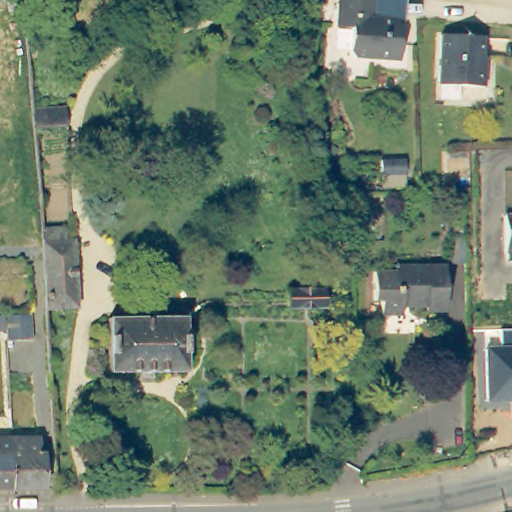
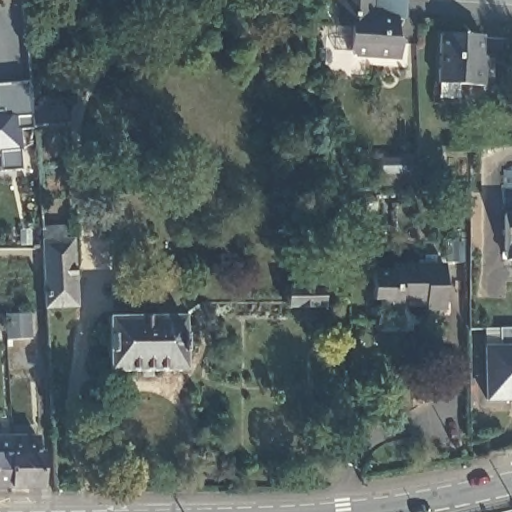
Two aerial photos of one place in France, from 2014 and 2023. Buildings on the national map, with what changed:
unchanged [(398,22),(396,38),(401,43),(400,59),(353,56),(353,53),(351,53),(352,30),(337,28),(338,0),(405,0),(404,22),(398,22)]
unchanged [(482,31),(481,50),(480,62),(483,62),(482,82),(437,78),(440,28),(482,31)]
new [(59,100),(62,126),(31,128),(18,130),(20,169),(0,171),(0,84),(27,83),(29,102),(59,100)]
demolished [(62,126),(31,128),(29,102),(59,100),(62,126)]
unchanged [(507,215),(510,214),(509,169),(512,169),(512,223),(507,223),(507,215)]
unchanged [(507,223),(512,223),(512,261),(508,261),(507,223)]
unchanged [(65,227),(66,237),(73,237),(74,260),(74,304),(43,305),(40,227),(65,227)]
unchanged [(468,258),(447,258),(447,232),(467,232),(468,258)]
unchanged [(441,307),(422,306),(421,301),(399,301),(398,310),(378,309),(378,298),(378,295),(371,295),(370,264),(390,264),(390,259),(412,259),(412,261),(422,262),(422,259),(442,258),(441,299),(441,307)]
unchanged [(174,268),(173,285),(141,282),(143,263),(174,268)]
unchanged [(322,297),(322,302),(286,301),(286,297),(286,284),(323,285),(322,297)]
unchanged [(0,333),(0,314),(24,312),(26,338),(1,340),(0,333)]
unchanged [(192,316),(191,344),(182,344),(182,369),(106,368),(106,315),(192,316)]
unchanged [(500,343),(498,328),(512,328),(512,401),(484,401),(484,344),(500,343)]
unchanged [(39,435),(39,451),(43,452),(44,486),(13,487),(12,437),(39,435)]
unchanged [(13,487),(0,487),(0,438),(12,437),(13,487)]

